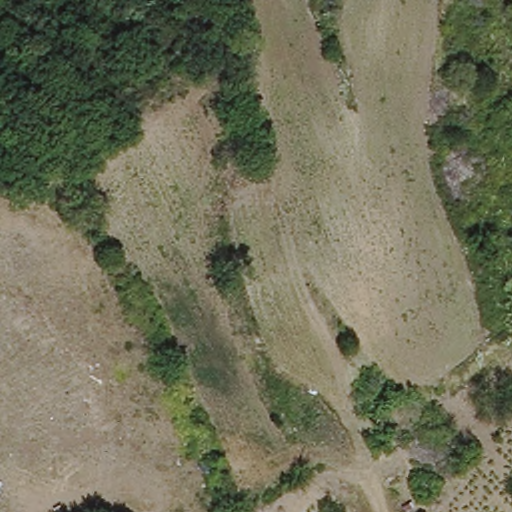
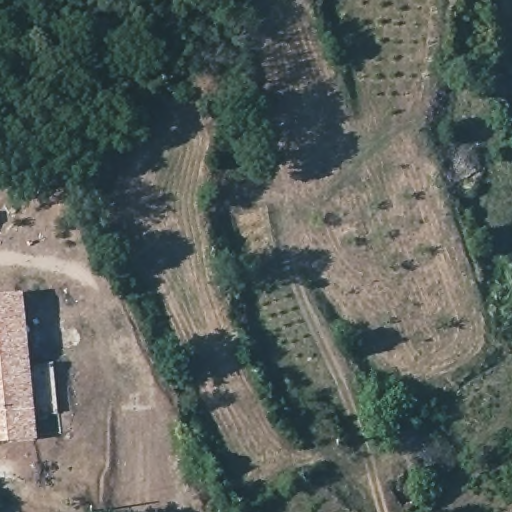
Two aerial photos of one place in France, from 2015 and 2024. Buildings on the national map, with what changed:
new [(0,444),(0,296),(25,293),(38,440),(0,444)]

